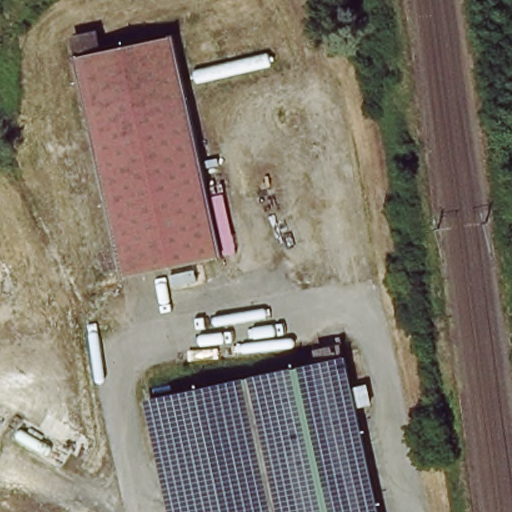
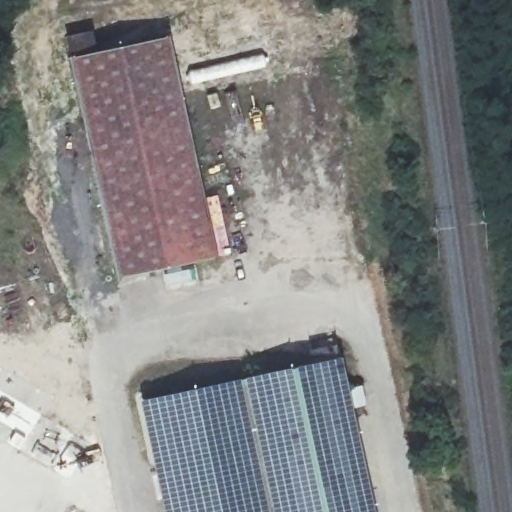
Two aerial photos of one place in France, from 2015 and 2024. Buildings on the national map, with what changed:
unchanged [(78,59),(174,40),(221,261),(123,280),(78,59)]
unchanged [(172,294),(168,274),(201,267),(205,287),(172,294)]
unchanged [(376,512),(172,512),(148,393),(344,353),(376,512)]

